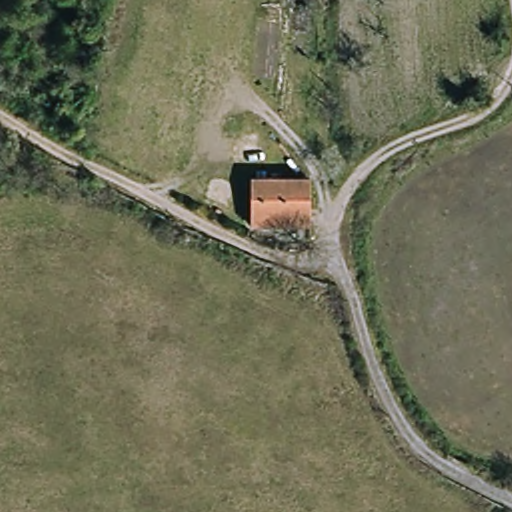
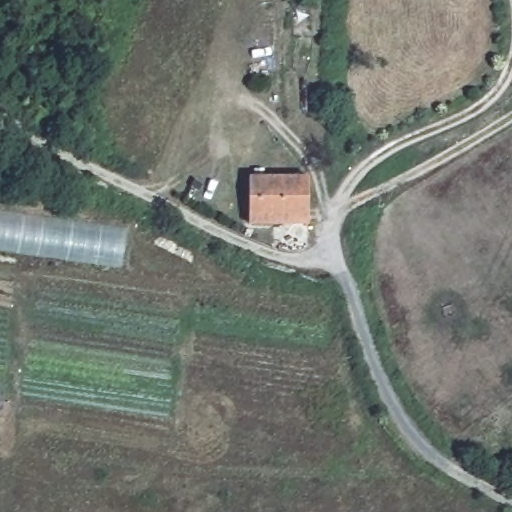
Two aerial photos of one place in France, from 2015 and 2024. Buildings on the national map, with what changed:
unchanged [(310,179),(315,222),(257,225),(255,180),(310,179)]
new [(127,225),(121,263),(0,245),(0,205),(127,225)]

